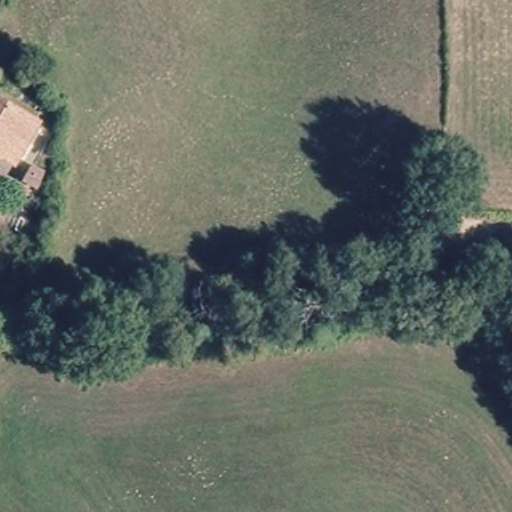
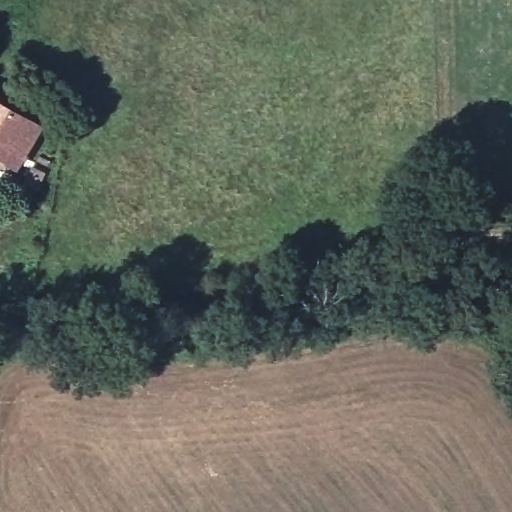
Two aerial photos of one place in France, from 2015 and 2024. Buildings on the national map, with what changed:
unchanged [(7,158),(0,155),(0,97),(30,111),(7,158)]

